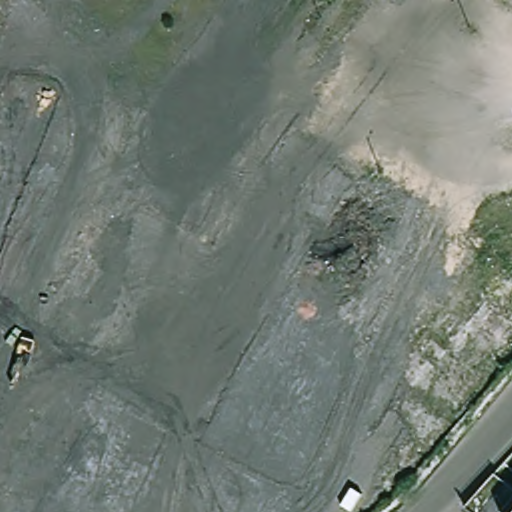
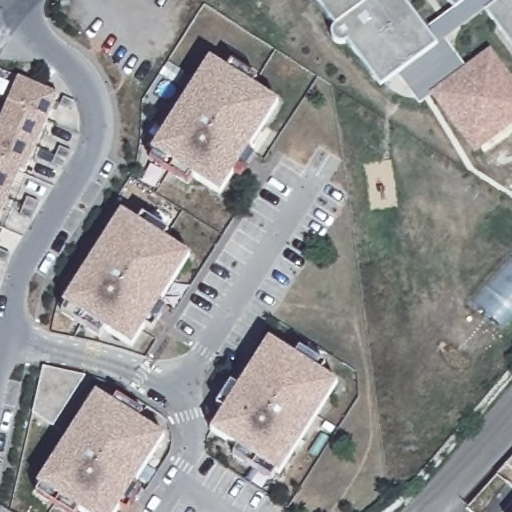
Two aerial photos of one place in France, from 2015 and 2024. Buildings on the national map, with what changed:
new [(445,39),(465,66),(490,47),(512,77),(512,127),(474,154),(432,96),(419,105),(396,73),(379,86),(346,42),(344,43),(340,43),(336,41),(333,38),(332,34),(333,30),(335,27),(316,0),(405,0),(426,28),(454,7),(449,0),(512,0),(512,47),(485,9),(445,39)]
new [(221,195),(152,151),(210,58),(279,103),(221,195)]
new [(18,77),(58,94),(24,172),(20,171),(0,217),(0,120),(18,77)]
new [(133,348),(62,303),(122,211),(192,254),(133,348)]
new [(474,304),(493,285),(500,277),(499,276),(512,271),(512,320),(504,328),(474,304)]
new [(338,382),(280,476),(210,431),(269,338),(338,382)]
new [(54,424),(35,411),(43,365),(85,374),(54,424)]
new [(80,512),(37,484),(96,392),(166,435),(117,512),(80,512)]
unchanged [(512,512),(467,512),(464,510),(512,456),(512,512)]

